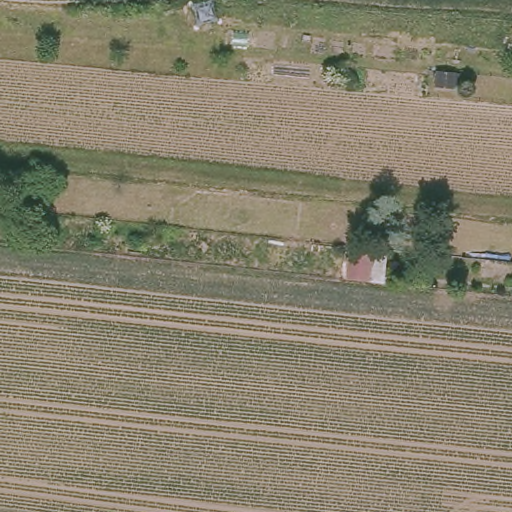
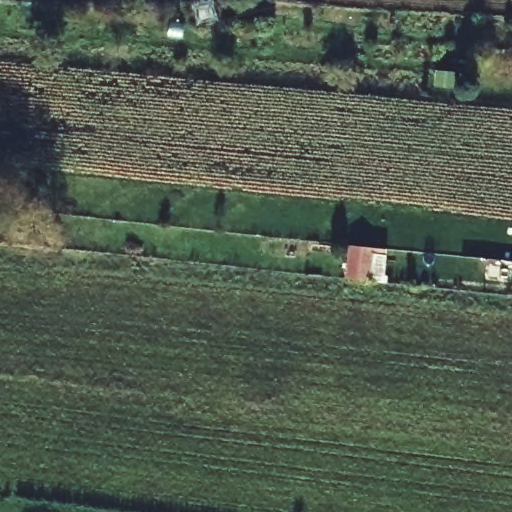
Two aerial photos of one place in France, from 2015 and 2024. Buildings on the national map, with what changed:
unchanged [(452,90),(435,88),(438,70),(455,71),(452,90)]
unchanged [(344,278),(346,238),(379,242),(373,282),(344,278)]

